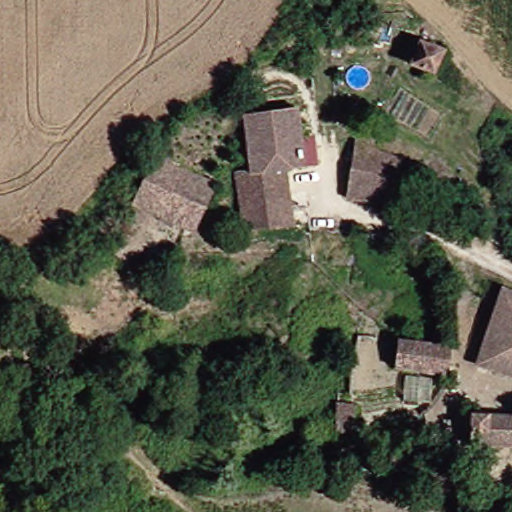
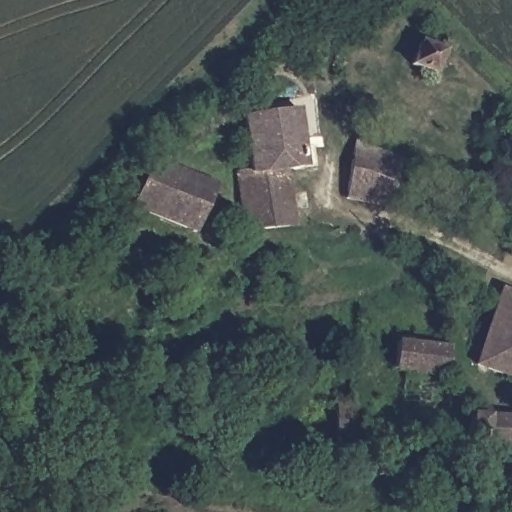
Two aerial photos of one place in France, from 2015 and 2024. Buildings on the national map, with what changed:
unchanged [(445,67),(420,63),(425,41),(448,45),(445,67)]
unchanged [(320,165),(307,166),(315,221),(267,225),(253,167),(265,163),(257,116),(311,109),(320,165)]
unchanged [(367,141),(405,151),(408,159),(405,205),(361,199),(367,141)]
unchanged [(225,183),(209,225),(144,206),(165,167),(225,183)]
unchanged [(492,366),(512,298),(512,373),(492,366)]
unchanged [(459,371),(403,370),(407,341),(463,344),(459,371)]
unchanged [(356,409),(348,450),(332,447),(338,406),(356,409)]
unchanged [(512,414),(512,443),(482,443),(485,415),(512,414)]

